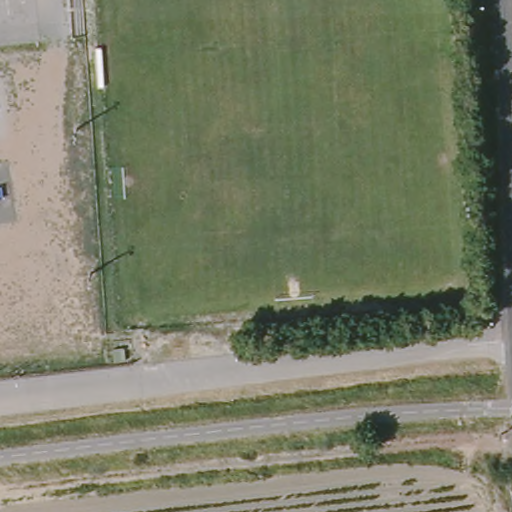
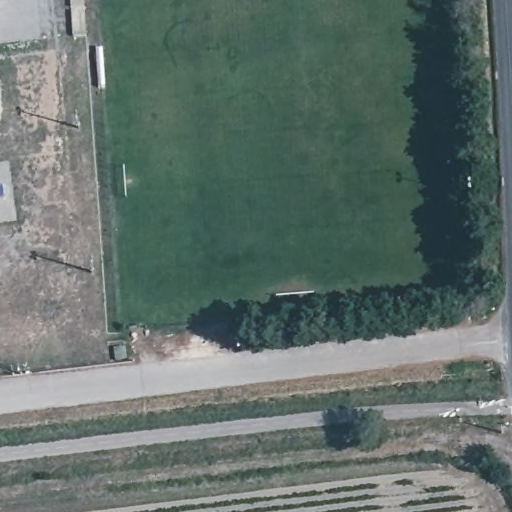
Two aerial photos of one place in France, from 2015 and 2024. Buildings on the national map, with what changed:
unchanged [(73,39),(71,0),(84,0),(87,38),(73,39)]

